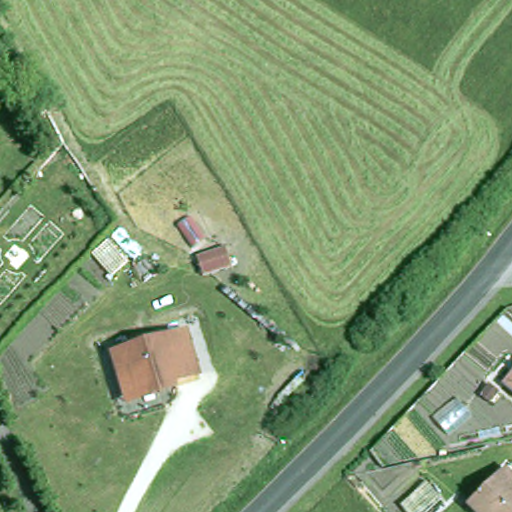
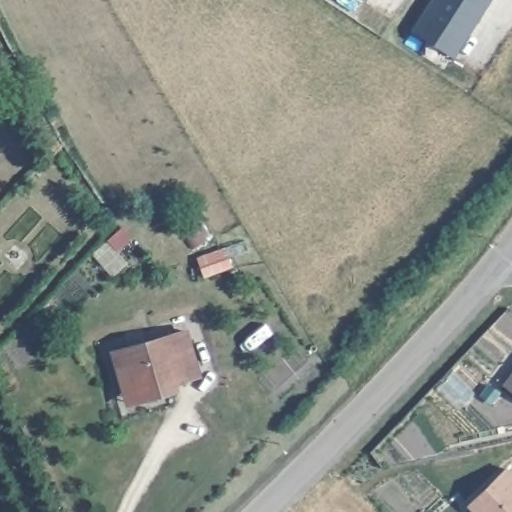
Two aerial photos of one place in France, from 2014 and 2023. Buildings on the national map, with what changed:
new [(430,0),(490,0),(453,57),(411,31),(430,0)]
new [(226,246),(233,265),(205,275),(198,256),(226,246)]
unchanged [(200,375),(178,383),(180,392),(128,405),(110,350),(188,331),(200,375)]
unchanged [(512,379),(512,394),(505,387),(512,379)]
unchanged [(502,472),(512,482),(512,512),(470,512),(465,507),(502,472)]

